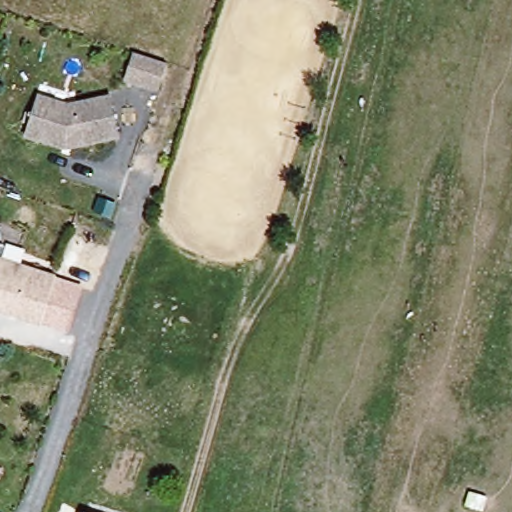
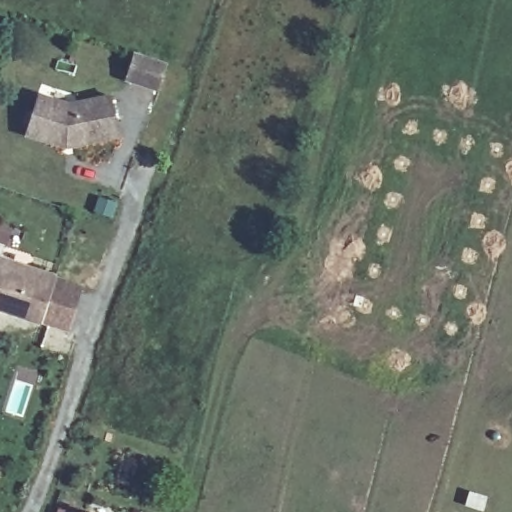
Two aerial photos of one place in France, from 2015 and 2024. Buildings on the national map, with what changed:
unchanged [(158,89),(124,78),(133,53),(166,64),(158,89)]
unchanged [(68,156),(26,144),(37,104),(69,113),(110,105),(120,145),(68,156)]
unchanged [(41,323),(0,309),(0,258),(57,276),(41,323)]
unchanged [(83,285),(67,332),(41,323),(57,276),(83,285)]
unchanged [(83,511),(85,512),(83,512),(83,511)]

